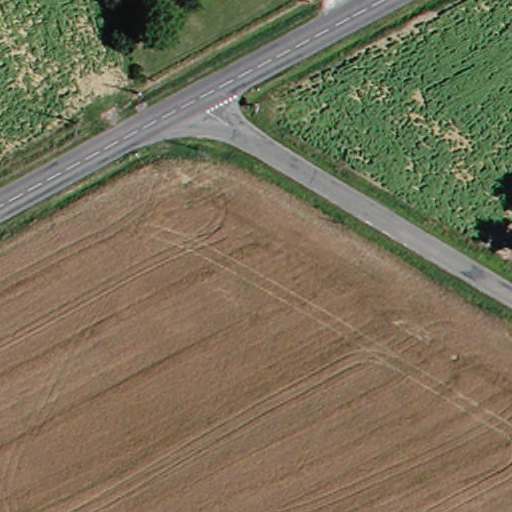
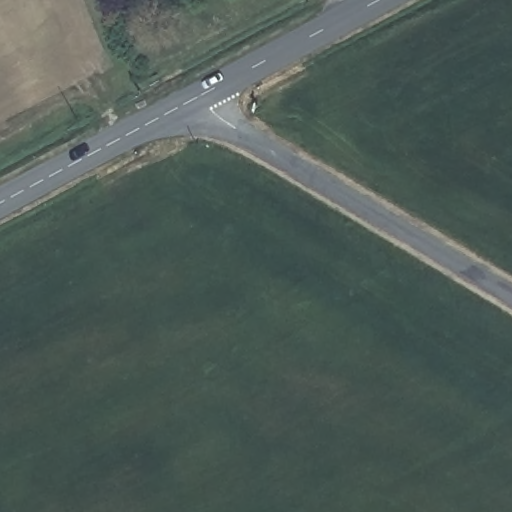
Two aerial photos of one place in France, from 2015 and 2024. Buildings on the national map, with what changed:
[]

